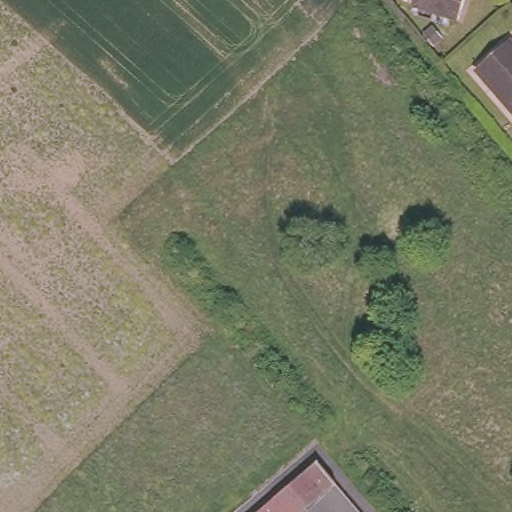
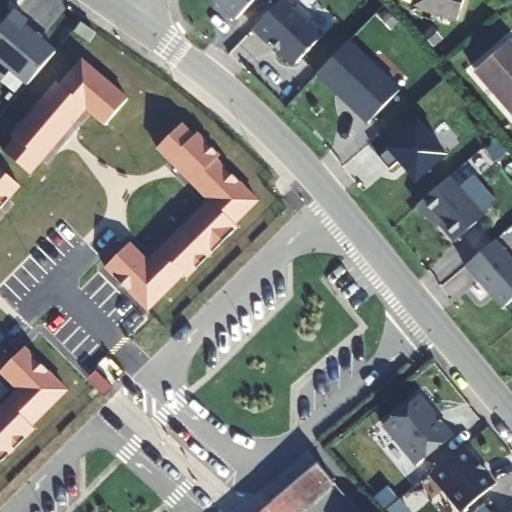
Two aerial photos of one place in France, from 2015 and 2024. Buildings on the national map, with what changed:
new [(234,16),(216,0),(250,0),(234,16)]
new [(293,65),(253,27),(279,0),(287,0),(295,7),(298,3),(312,16),(309,20),(325,34),(293,65)]
unchanged [(455,20),(410,5),(411,0),(461,0),(455,20)]
new [(0,61),(0,25),(15,7),(29,20),(25,24),(56,50),(27,84),(0,61)]
unchanged [(472,66),(507,36),(512,42),(512,112),(472,66)]
new [(367,122),(316,72),(350,37),(401,88),(367,122)]
new [(15,136),(11,132),(57,81),(59,85),(82,58),(127,97),(105,124),(85,106),(30,171),(5,149),(15,136)]
new [(181,123),(193,136),(196,132),(219,155),(216,158),(257,199),(233,222),(235,225),(185,275),(182,272),(147,308),(104,265),(130,241),(147,259),(208,199),(157,146),(181,123)]
new [(0,204),(0,166),(19,182),(0,204)]
new [(455,240),(443,228),(441,230),(417,202),(450,174),(485,214),(455,240)]
new [(502,308),(466,265),(497,239),(512,256),(512,299),(502,308)]
new [(33,421),(36,425),(0,461),(0,405),(18,387),(0,369),(25,345),(67,386),(33,421)]
new [(417,465),(383,425),(419,393),(453,435),(417,465)]
new [(462,442),(473,456),(470,460),(489,483),(460,507),(428,470),(462,442)]
unchanged [(322,457),(339,477),(337,480),(299,512),(259,512),(275,497),(285,490),(322,457)]

